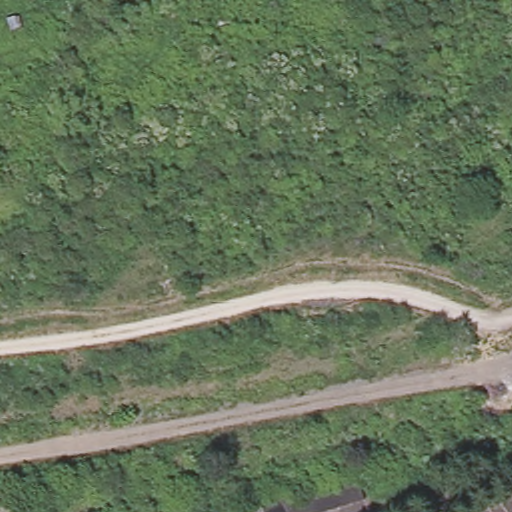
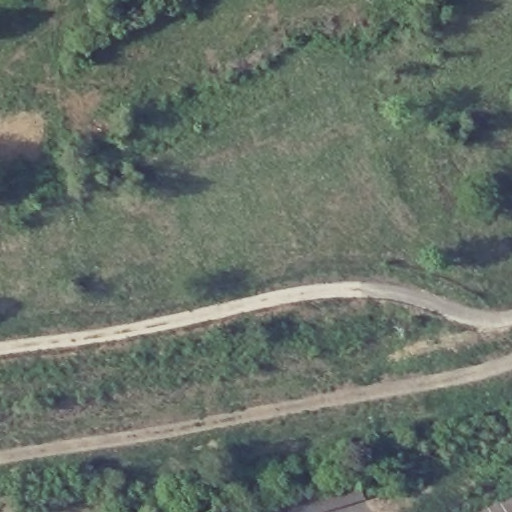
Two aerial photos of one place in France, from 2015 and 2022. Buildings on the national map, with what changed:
unchanged [(224,62),(207,67),(202,45),(215,38),(224,62)]
unchanged [(242,509),(256,502),(270,495),(272,497),(290,492),(302,488),(315,485),(327,481),(340,477),(354,472),(361,497),(347,502),(334,505),(323,508),(309,512),(236,512),(242,509)]
unchanged [(512,508),(512,512),(506,512),(512,508)]

